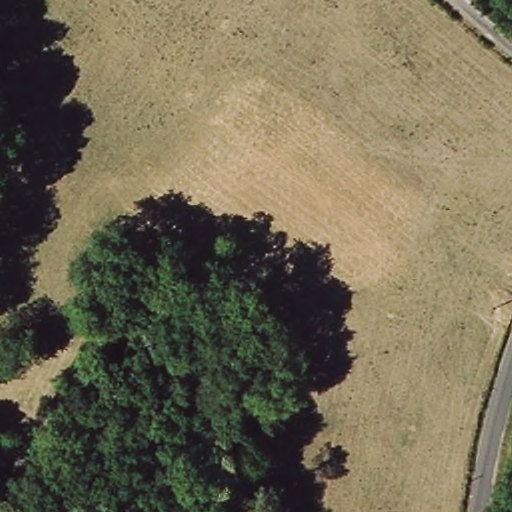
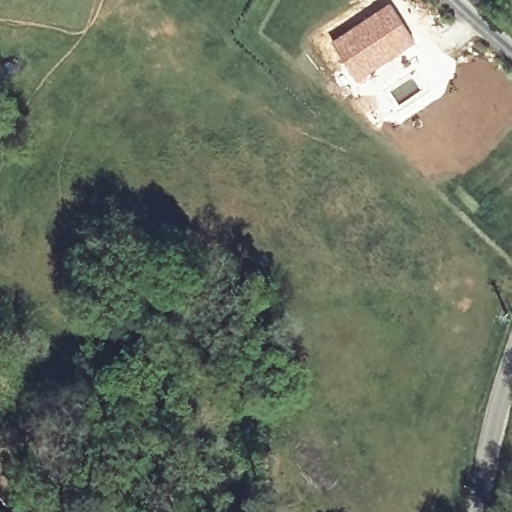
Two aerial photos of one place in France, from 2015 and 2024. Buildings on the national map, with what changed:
new [(357,81),(333,41),(390,4),(416,43),(357,81)]

